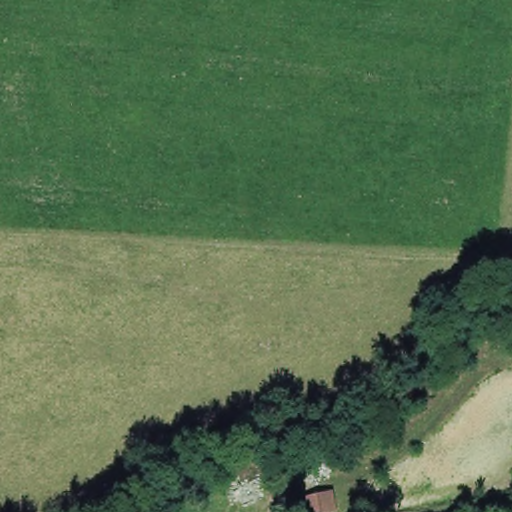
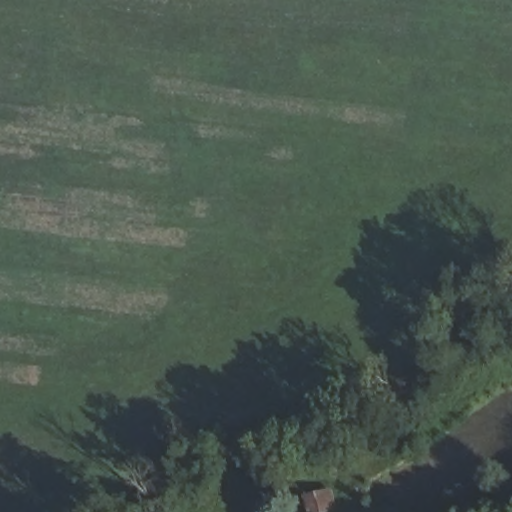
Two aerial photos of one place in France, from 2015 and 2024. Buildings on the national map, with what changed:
unchanged [(341,512),(339,512),(308,512),(305,501),(335,490),(341,512)]

